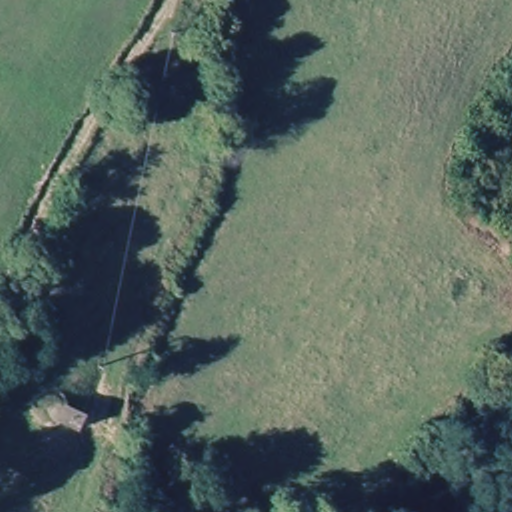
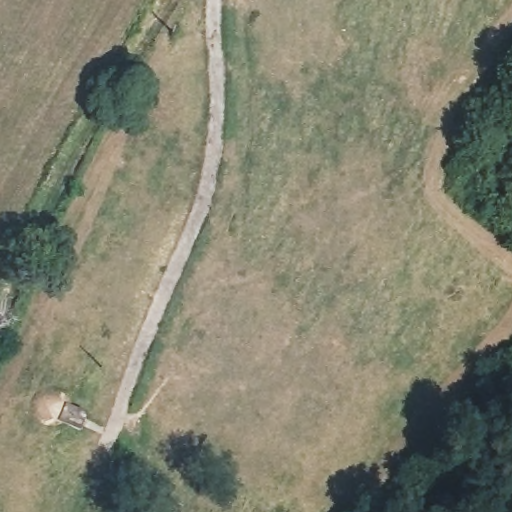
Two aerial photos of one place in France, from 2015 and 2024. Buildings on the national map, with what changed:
unchanged [(50,391),(70,395),(67,405),(82,410),(76,428),(56,425),(54,433),(40,423),(50,391)]

